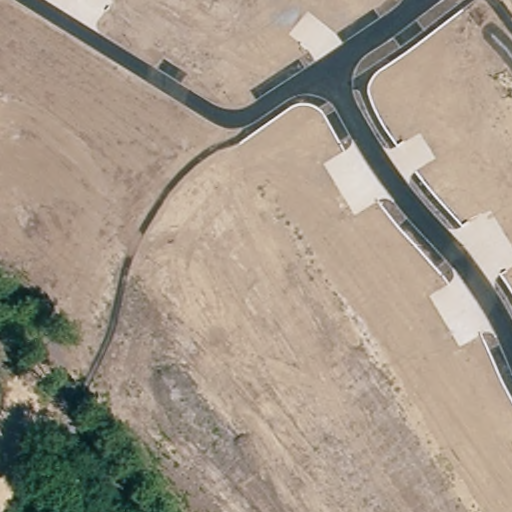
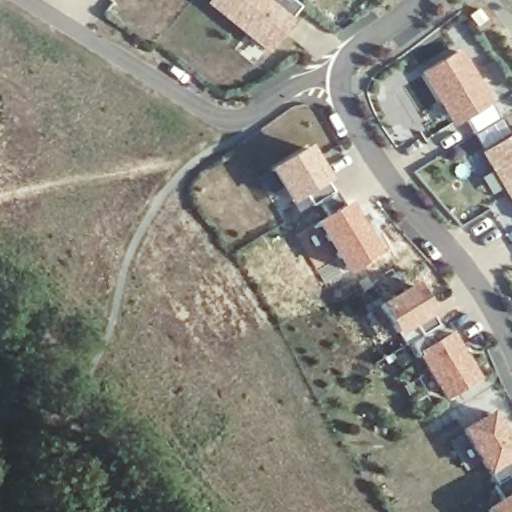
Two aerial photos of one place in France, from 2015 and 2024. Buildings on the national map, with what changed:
new [(292,0),(301,7),(266,50),(210,4),(213,0),(292,0)]
new [(494,104),(491,105),(500,121),(476,135),(466,120),(453,128),(421,74),(462,51),(494,104)]
new [(512,134),(512,201),(480,153),(512,134)]
new [(307,149),(333,194),(311,207),(303,193),(290,201),(271,171),(307,149)]
new [(432,315),(438,327),(430,332),(435,342),(452,332),(480,380),(445,402),(409,344),(420,337),(415,327),(396,338),(375,306),(413,282),(432,315)]
new [(512,449),(512,458),(511,458),(512,459),(512,476),(496,486),(463,431),(491,415),(512,449)]
new [(512,512),(482,512),(481,511),(504,496),(496,486),(512,476),(512,512)]

